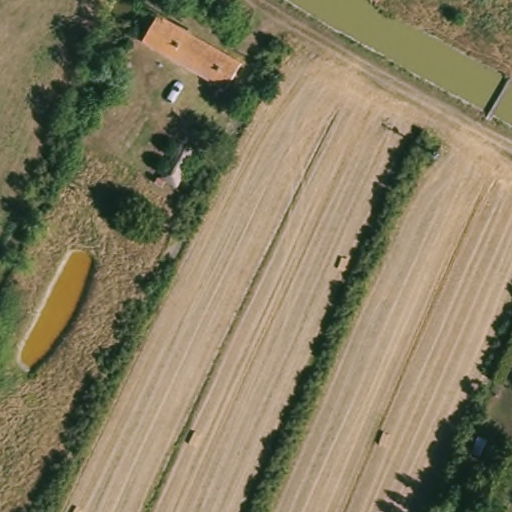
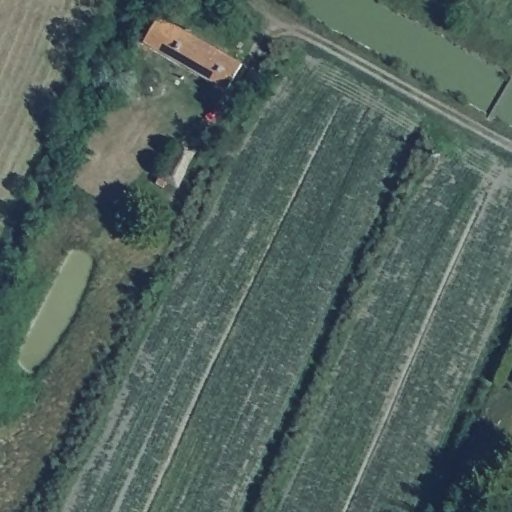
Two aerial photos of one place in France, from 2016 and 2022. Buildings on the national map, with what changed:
unchanged [(144,48),(160,18),(240,61),(225,91),(144,48)]

